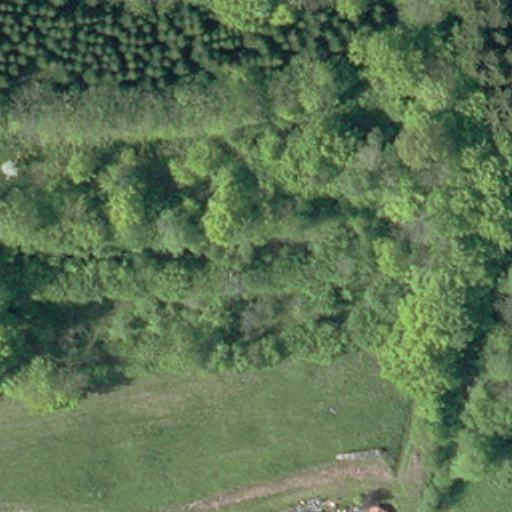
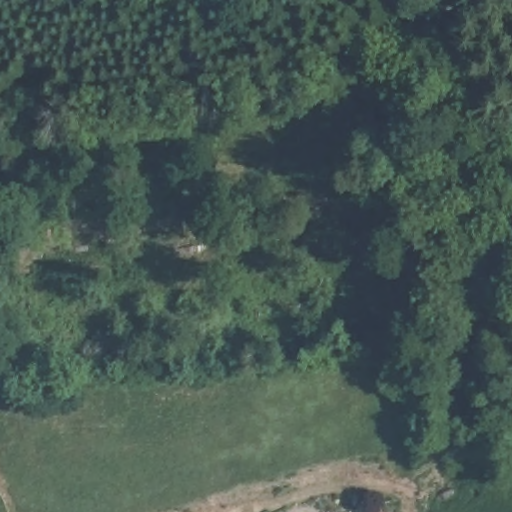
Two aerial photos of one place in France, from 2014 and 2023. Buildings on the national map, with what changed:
unchanged [(388,512),(369,512),(370,506),(379,506),(388,512)]

